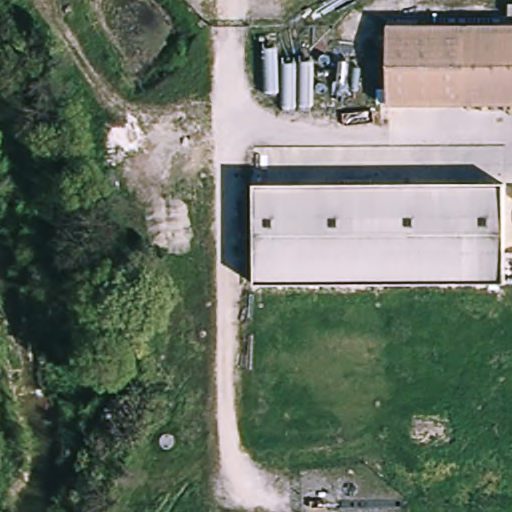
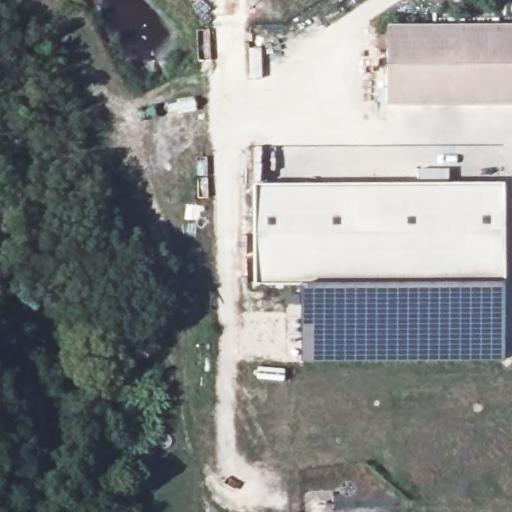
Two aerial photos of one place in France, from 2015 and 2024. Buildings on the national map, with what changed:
unchanged [(382,31),(512,29),(512,104),(383,107),(382,31)]
unchanged [(508,182),(509,282),(256,285),(255,187),(508,182)]
new [(497,283),(498,358),(298,361),(297,285),(497,283)]

